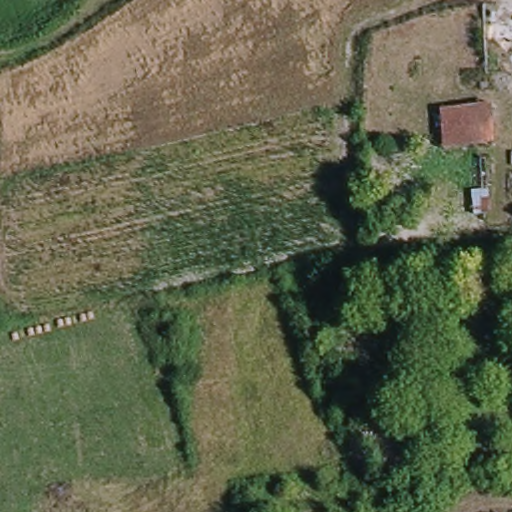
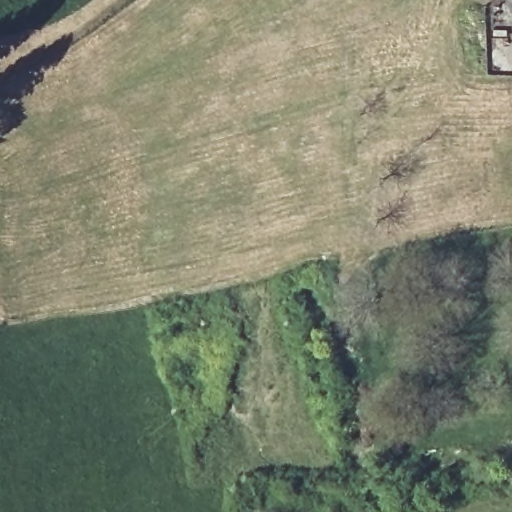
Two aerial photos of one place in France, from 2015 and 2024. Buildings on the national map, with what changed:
demolished [(497,145),(445,147),(442,111),(493,106),(497,145)]

